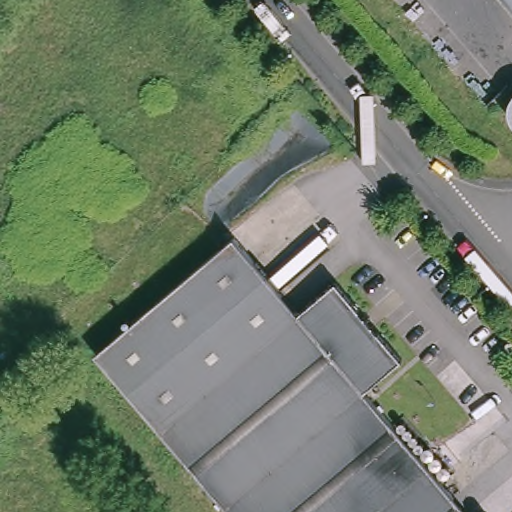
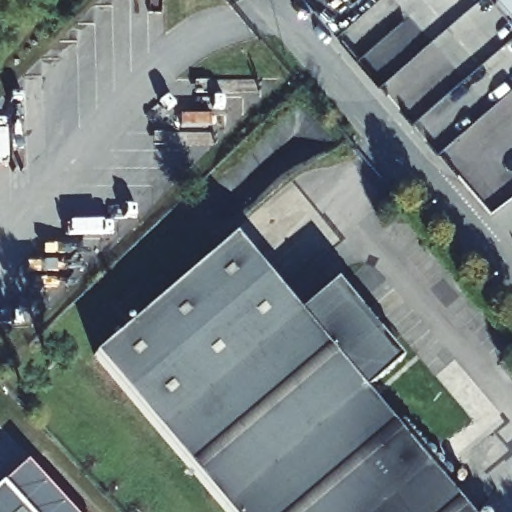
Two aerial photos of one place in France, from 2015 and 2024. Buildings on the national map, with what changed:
unchanged [(295,314),(332,283),(398,362),(362,393),(461,512),(225,512),(93,354),(232,238),(295,314)]
new [(0,512),(0,481),(25,458),(73,512),(0,512)]

